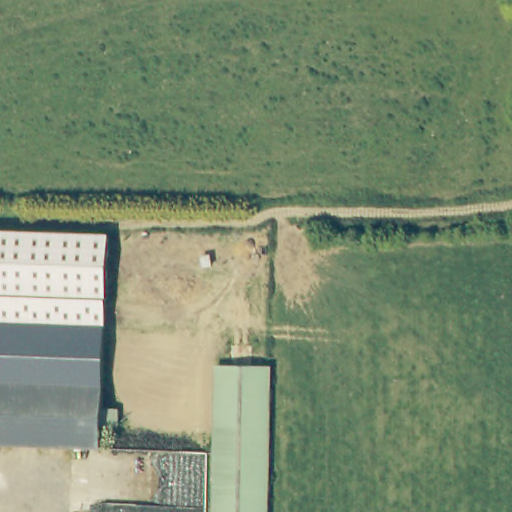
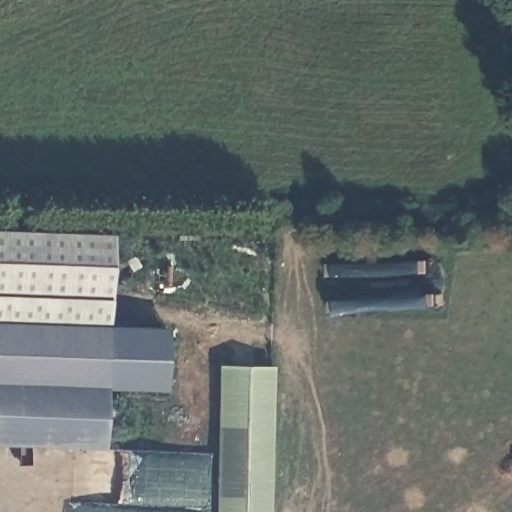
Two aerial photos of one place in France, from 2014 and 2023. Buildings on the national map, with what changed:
unchanged [(0,230),(105,235),(101,324),(0,325),(0,230)]
unchanged [(0,418),(0,325),(101,324),(104,413),(0,418)]
new [(101,324),(165,328),(165,391),(103,389),(101,324)]
unchanged [(262,364),(265,418),(240,418),(216,418),(215,365),(262,364)]
unchanged [(0,448),(0,418),(104,413),(104,447),(0,448)]
unchanged [(216,418),(240,418),(242,512),(220,512),(217,454),(216,418)]
unchanged [(242,512),(240,418),(265,418),(268,512),(242,512)]

